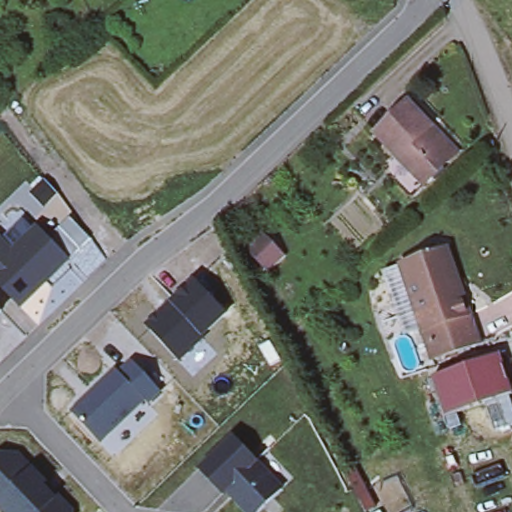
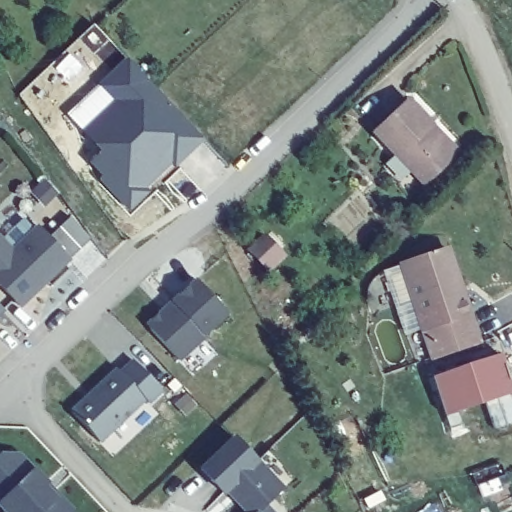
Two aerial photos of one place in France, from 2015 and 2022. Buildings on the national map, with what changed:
new [(201,137),(129,207),(102,181),(106,177),(92,163),(102,151),(69,115),(126,60),(201,137)]
unchanged [(429,124),(437,115),(462,142),(453,151),(445,159),(419,183),(372,132),(407,100),(429,124)]
unchanged [(38,226),(50,237),(70,219),(90,239),(21,307),(0,286),(0,235),(14,248),(38,226)]
unchanged [(448,247),(465,295),(470,311),(424,326),(414,297),(396,304),(384,270),(402,263),(440,250),(448,247)]
unchanged [(194,279),(228,315),(179,360),(145,325),(194,279)]
unchanged [(0,314),(0,309),(2,312),(0,314)]
unchanged [(470,311),(480,340),(477,340),(463,345),(439,353),(434,355),(424,326),(470,311)]
unchanged [(511,393),(444,415),(432,378),(499,353),(511,393)]
unchanged [(149,406),(144,400),(100,443),(70,413),(117,369),(121,374),(134,361),(164,393),(149,406)]
unchanged [(260,512),(241,512),(235,505),(237,502),(227,492),(222,497),(199,474),(232,442),(280,492),(260,512)]
unchanged [(70,512),(2,512),(0,510),(0,457),(17,457),(70,511),(70,512)]

